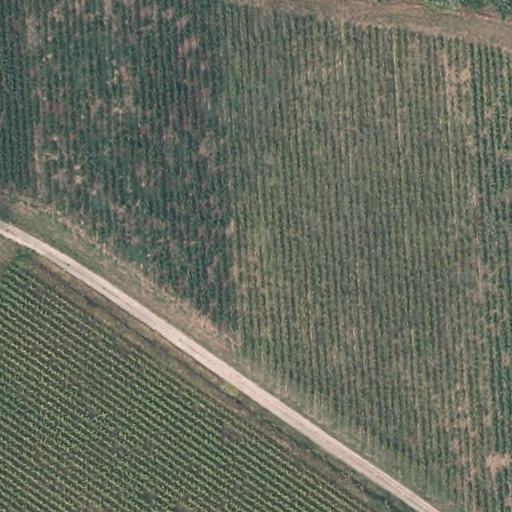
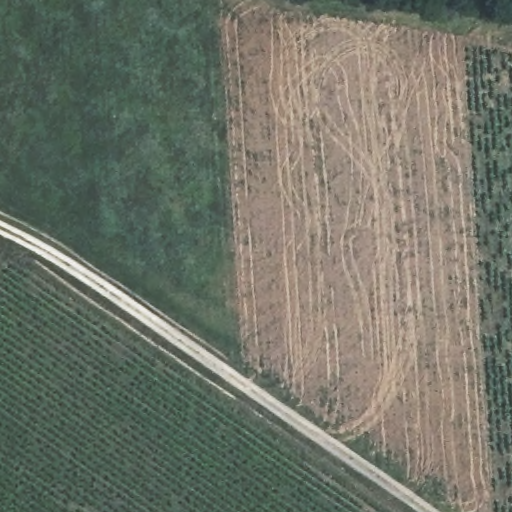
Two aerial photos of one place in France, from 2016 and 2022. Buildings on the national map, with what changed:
[]

